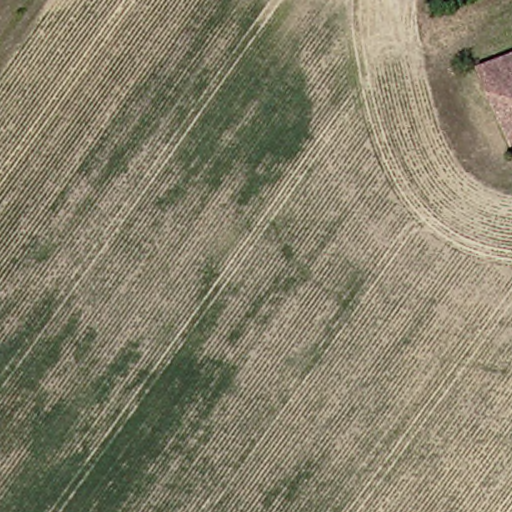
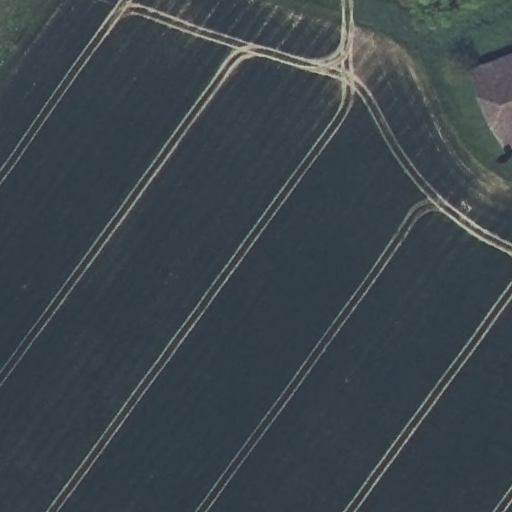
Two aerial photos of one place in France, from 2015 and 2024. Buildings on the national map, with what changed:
unchanged [(512,53),(512,146),(506,149),(471,69),(512,53)]

